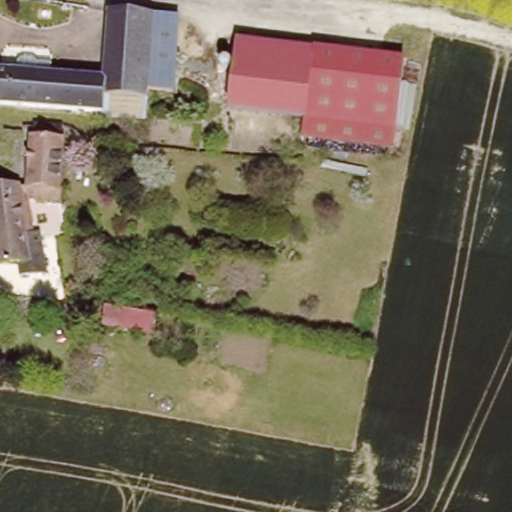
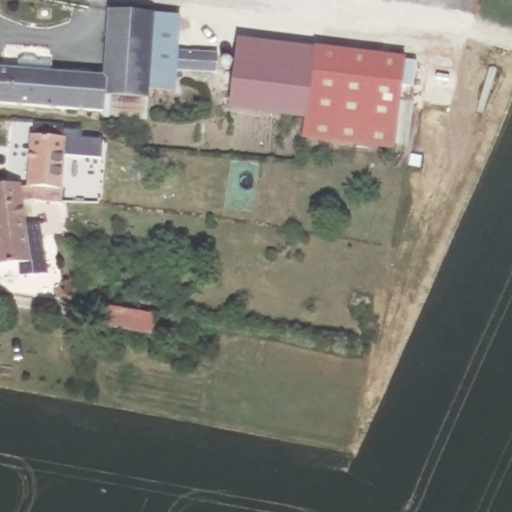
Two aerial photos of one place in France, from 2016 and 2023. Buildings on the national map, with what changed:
unchanged [(18,56),(39,57),(39,61),(52,61),(52,71),(103,73),(111,10),(153,13),(144,98),(143,101),(103,100),(102,115),(0,108),(0,68),(18,69),(18,56)]
unchanged [(163,99),(144,98),(153,13),(174,15),(163,99)]
unchanged [(303,113),(230,106),(237,40),(310,47),(303,113)]
unchanged [(301,133),(302,119),(303,113),(310,47),(397,55),(388,135),(387,141),(301,133)]
unchanged [(59,189),(57,202),(18,198),(19,206),(29,260),(19,261),(0,264),(0,183),(22,182),(25,119),(60,121),(59,136),(56,189),(59,189)]
unchanged [(49,272),(21,275),(19,261),(29,260),(19,206),(29,205),(36,234),(42,233),(49,272)]
unchanged [(156,328),(107,319),(111,301),(159,310),(156,328)]

